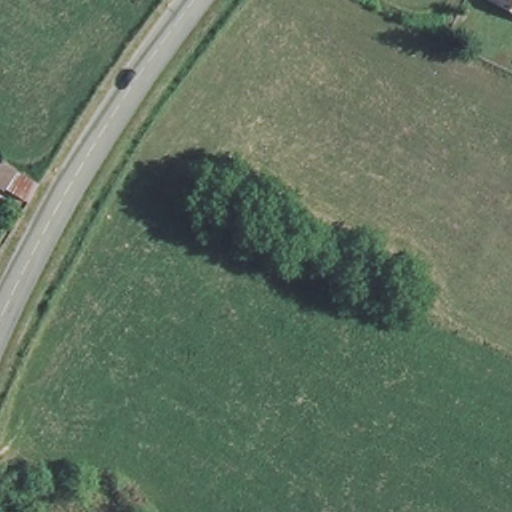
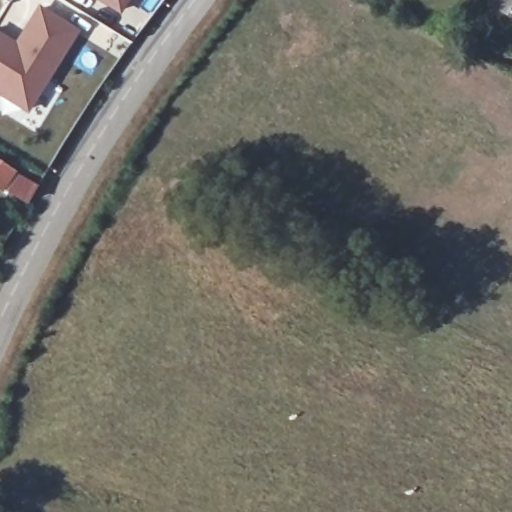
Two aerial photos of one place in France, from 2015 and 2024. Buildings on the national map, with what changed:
new [(98,0),(126,0),(118,12),(98,0)]
unchanged [(493,0),(512,0),(512,9),(493,0)]
new [(0,97),(0,32),(15,41),(38,4),(77,30),(26,113),(0,97)]
unchanged [(25,207),(0,191),(0,160),(37,183),(25,207)]

